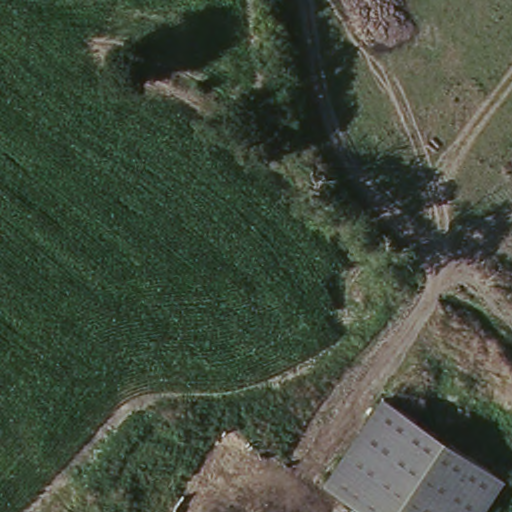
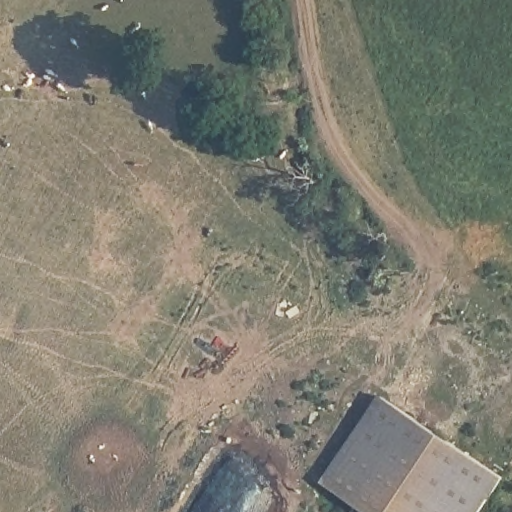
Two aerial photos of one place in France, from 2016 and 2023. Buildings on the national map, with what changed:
unchanged [(504,477),(479,512),(369,512),(326,483),(383,396),(504,477)]

